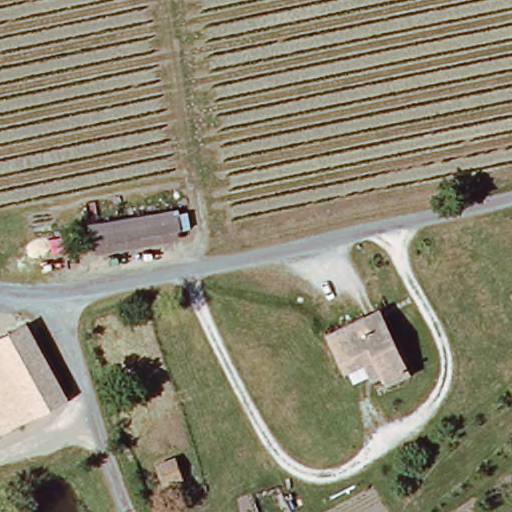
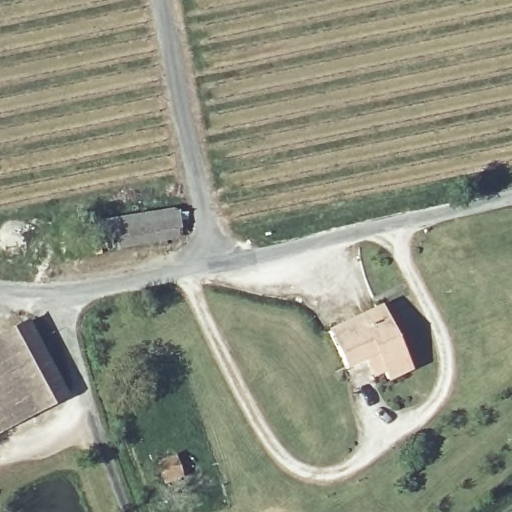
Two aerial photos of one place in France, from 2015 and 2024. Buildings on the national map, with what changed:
unchanged [(172,208),(180,239),(94,255),(85,223),(172,208)]
unchanged [(383,312),(408,377),(383,387),(372,357),(339,369),(325,333),(383,312)]
unchanged [(59,401),(0,430),(0,338),(20,328),(59,401)]
unchanged [(186,461),(195,478),(180,487),(171,470),(186,461)]

